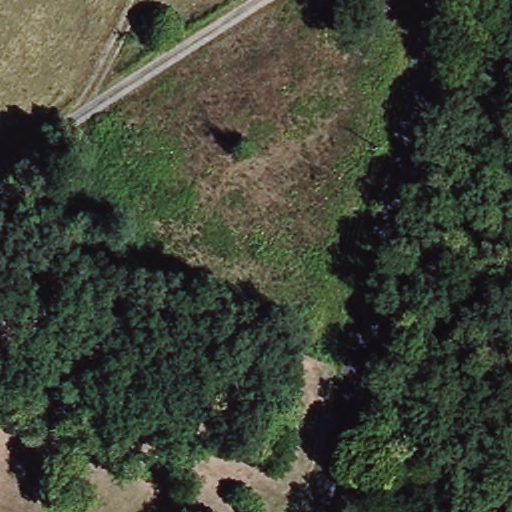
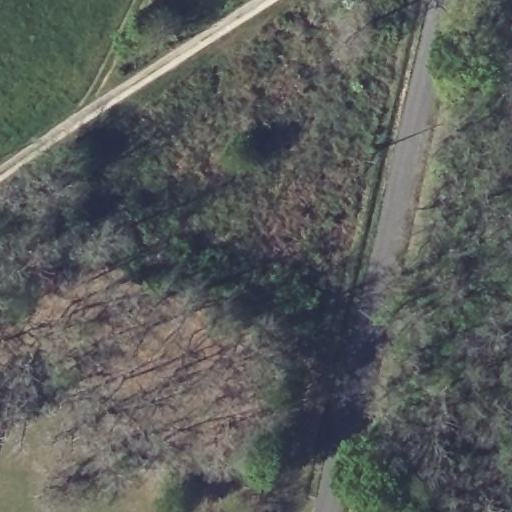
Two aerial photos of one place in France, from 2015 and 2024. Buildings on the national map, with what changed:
unchanged [(36,263),(55,276),(44,292),(24,279),(36,263)]

